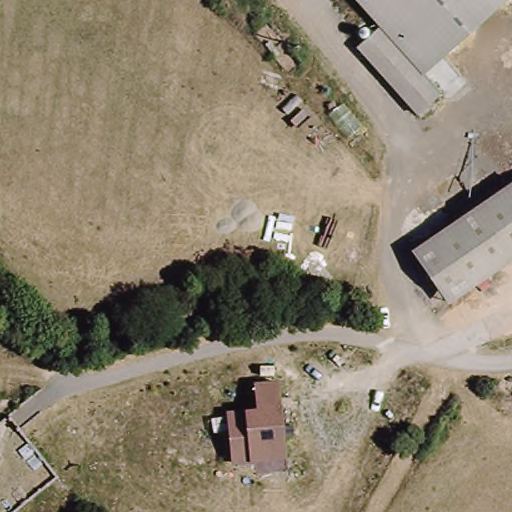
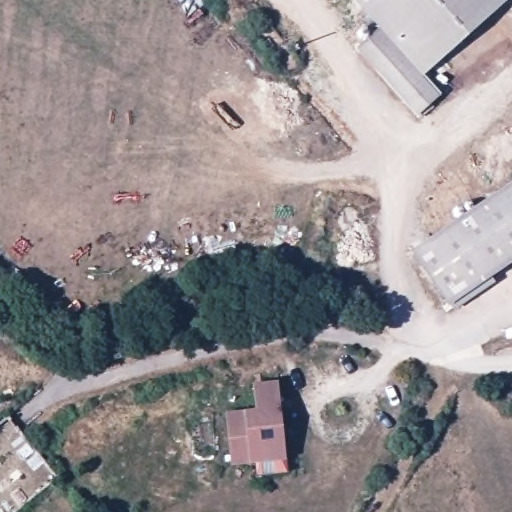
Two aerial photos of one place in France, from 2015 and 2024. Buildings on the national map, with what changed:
unchanged [(440,106),(418,125),(353,54),(377,36),(346,0),(512,0),(512,1),(419,81),(440,106)]
unchanged [(410,246),(512,179),(512,245),(440,292),(410,246)]
unchanged [(226,411),(245,408),(256,407),(254,382),(280,380),(288,459),(250,463),(233,464),(226,411)]

